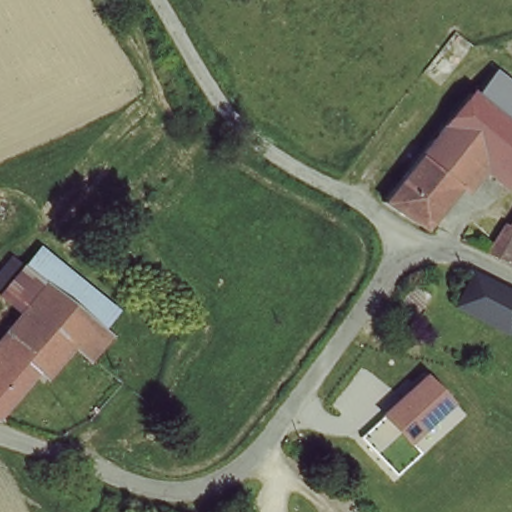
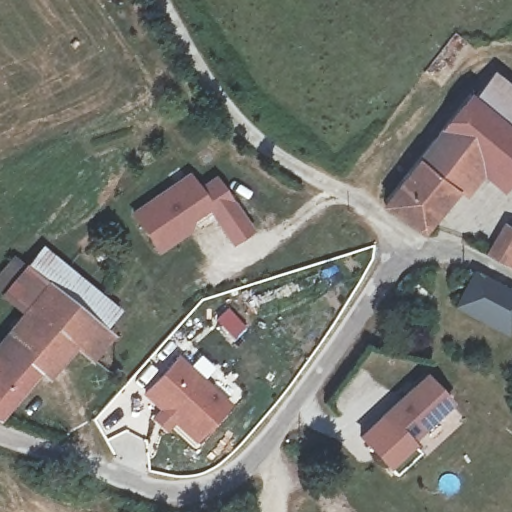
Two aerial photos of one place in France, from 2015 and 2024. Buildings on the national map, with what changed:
unchanged [(512,184),(504,194),(482,179),(465,198),(460,194),(428,234),(380,203),(469,89),(475,95),(497,69),(512,83),(512,184)]
new [(237,248),(221,225),(213,213),(188,230),(192,236),(163,256),(139,219),(193,181),(203,196),(219,186),(238,213),(254,237),(237,248)]
unchanged [(487,249),(505,224),(512,227),(512,261),(487,249)]
unchanged [(5,295),(1,291),(21,264),(34,274),(50,262),(65,275),(53,291),(31,316),(5,295)]
unchanged [(50,262),(122,314),(118,322),(107,337),(53,291),(65,275),(50,262)]
unchanged [(486,283),(512,296),(512,314),(502,329),(454,305),(472,277),(486,283)]
unchanged [(418,288),(435,299),(410,332),(392,322),(418,288)]
unchanged [(53,291),(107,337),(113,342),(96,364),(69,341),(8,418),(0,415),(0,353),(31,316),(53,291)]
new [(232,407),(197,447),(142,395),(177,356),(232,407)]
unchanged [(454,403),(410,443),(419,453),(395,473),(358,434),(425,373),(454,403)]

